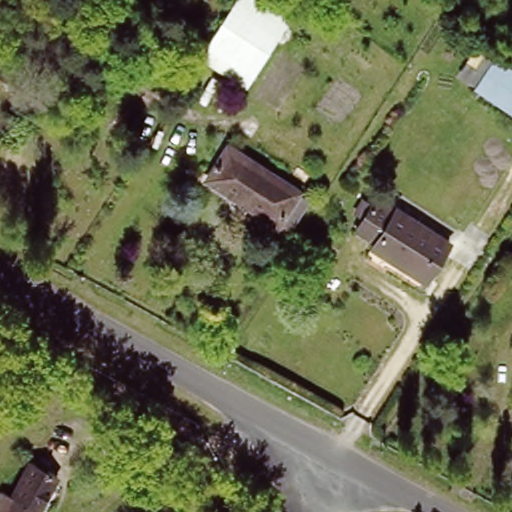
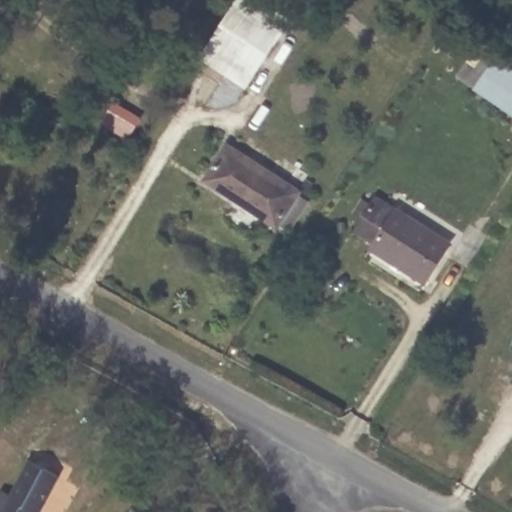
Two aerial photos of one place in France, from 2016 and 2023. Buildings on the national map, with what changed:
unchanged [(243,86),(195,59),(232,0),(257,0),(284,16),(243,86)]
unchanged [(470,91),(450,78),(465,53),(486,65),(512,81),(512,118),(470,91)]
unchanged [(296,199),(276,232),(206,187),(227,154),(296,199)]
unchanged [(369,253),(370,249),(351,237),(371,207),(393,219),(399,207),(451,238),(445,248),(424,285),(369,253)]
unchanged [(505,347),(512,338),(512,351),(505,347)]
unchanged [(57,474),(51,487),(39,508),(37,512),(0,512),(0,502),(6,492),(13,495),(34,460),(57,474)]

